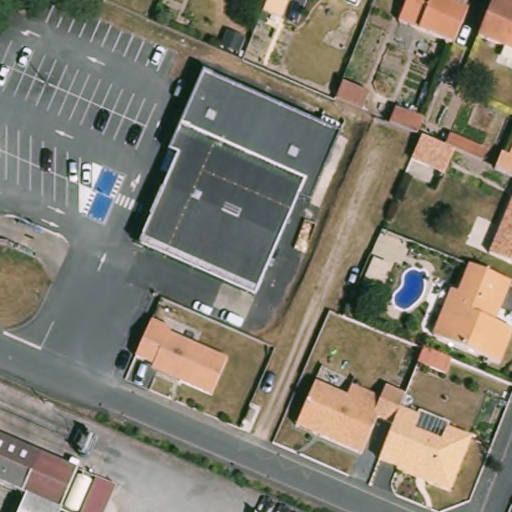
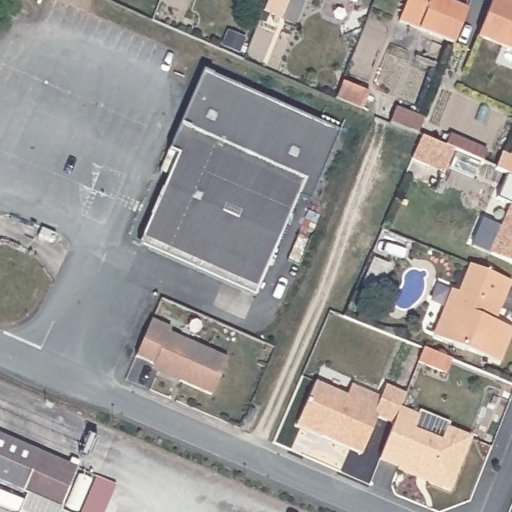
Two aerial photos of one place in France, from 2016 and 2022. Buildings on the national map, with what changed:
unchanged [(306,0),(297,21),(280,15),(286,0),(306,0)]
unchanged [(449,0),(468,7),(454,41),(399,20),(406,0),(449,0)]
unchanged [(498,0),(507,0),(512,2),(512,51),(482,40),(498,0)]
unchanged [(205,70),(342,127),(310,205),(299,200),(310,175),(183,121),(205,70)]
unchanged [(351,100),(356,86),(382,97),(377,110),(351,100)]
unchanged [(411,110),(439,121),(433,135),(432,139),(414,131),(404,126),(411,110)]
unchanged [(178,155),(168,151),(183,121),(310,175),(299,200),(259,293),(140,245),(178,155)]
unchanged [(463,140),(499,155),(494,167),(492,166),(459,151),(463,140)]
unchanged [(500,164),(504,153),(512,156),(512,175),(498,169),(500,164)]
unchanged [(512,207),(512,260),(493,252),(512,207)]
unchanged [(512,281),(512,299),(507,311),(502,323),(512,327),(512,351),(506,365),(442,340),(453,311),(460,293),(468,296),(479,268),(480,268),(501,276),(512,281)]
unchanged [(150,363),(131,355),(147,318),(167,326),(165,331),(223,356),(207,393),(175,380),(148,367),(150,363)]
unchanged [(463,361),(458,375),(430,364),(436,350),(463,361)]
unchanged [(303,416),(318,380),(349,393),(354,382),(382,395),(376,412),(380,414),(366,452),(323,435),(299,425),(303,416)]
unchanged [(393,431),(402,408),(421,415),(416,429),(444,440),(450,428),(473,437),(453,490),(400,468),(401,465),(382,457),(393,431)]
unchanged [(117,485),(106,512),(82,512),(66,505),(63,512),(20,512),(27,495),(0,483),(0,432),(117,485)]

